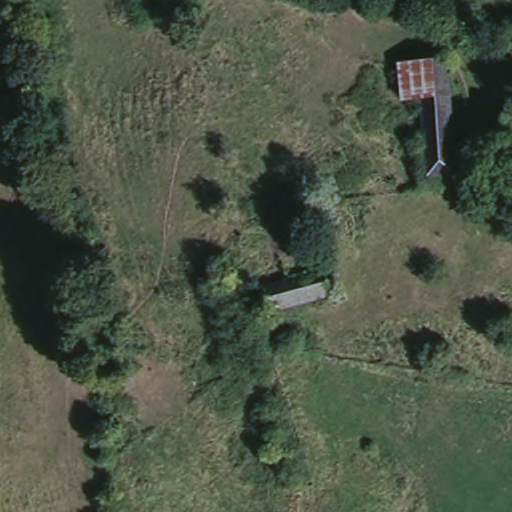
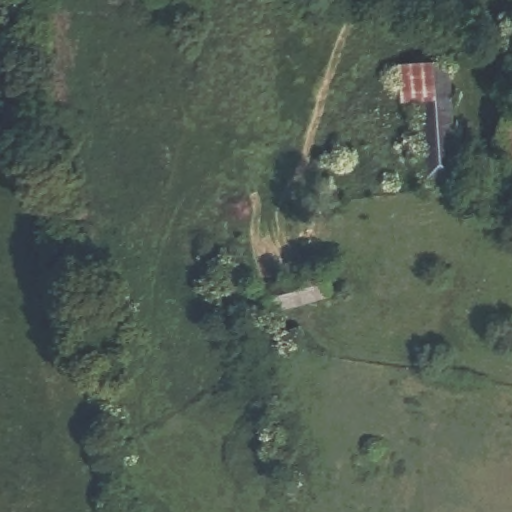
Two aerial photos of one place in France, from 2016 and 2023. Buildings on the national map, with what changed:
unchanged [(447,191),(434,191),(434,174),(423,174),(422,96),(403,96),(400,56),(446,55),(449,170),(447,191)]
unchanged [(512,180),(485,173),(504,100),(512,102),(512,180)]
unchanged [(334,292),(276,311),(265,283),(322,265),(334,292)]

